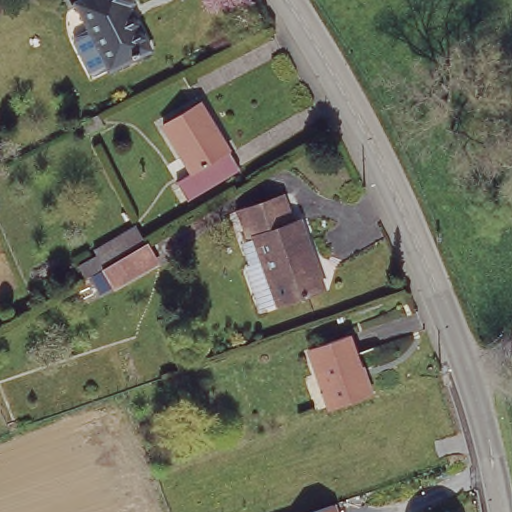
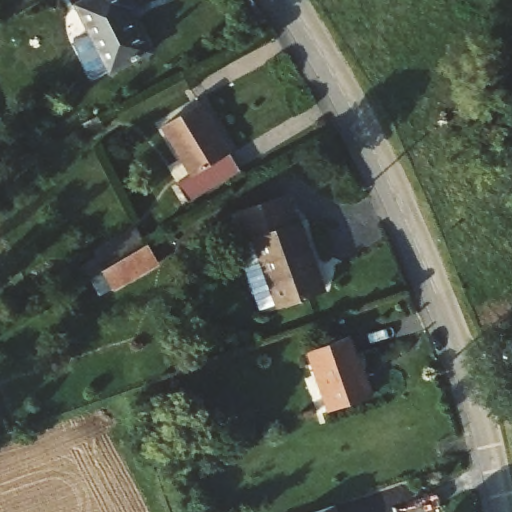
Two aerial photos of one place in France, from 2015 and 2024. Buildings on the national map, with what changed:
unchanged [(83,0),(129,0),(131,4),(126,7),(150,52),(107,73),(75,4),(83,0)]
unchanged [(198,98),(230,152),(195,173),(163,118),(198,98)]
unchanged [(240,168),(188,198),(179,182),(195,173),(230,152),(240,168)]
unchanged [(253,270),(243,240),(246,239),(237,209),(281,193),(290,219),(300,217),(311,249),(306,251),(320,289),(277,303),(260,309),(247,271),(253,270)]
unchanged [(83,278),(77,269),(95,260),(90,251),(132,225),(143,242),(155,261),(112,288),(95,298),(83,278)]
unchanged [(310,355),(352,340),(372,399),(331,413),(310,355)]
unchanged [(340,512),(319,512),(338,506),(340,512)]

